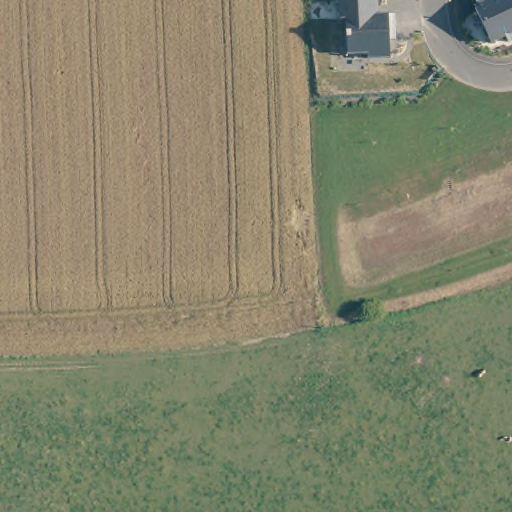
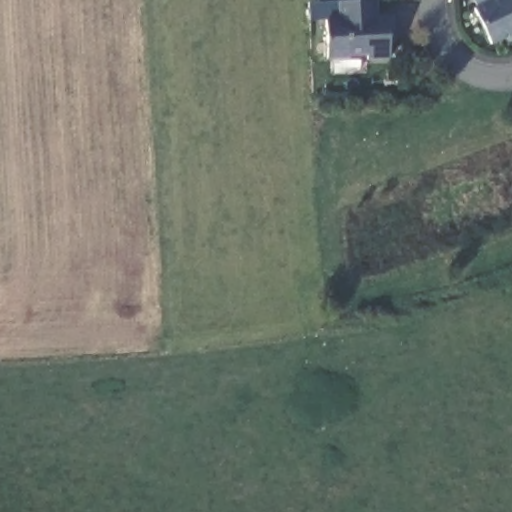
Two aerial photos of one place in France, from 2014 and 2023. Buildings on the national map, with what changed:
unchanged [(379,15),(390,15),(391,58),(367,60),(366,56),(348,57),(344,20),(339,20),(338,1),(358,0),(378,0),(379,15)]
unchanged [(506,39),(490,45),(473,8),(477,6),(474,0),(512,0),(512,42),(509,43),(506,39)]

